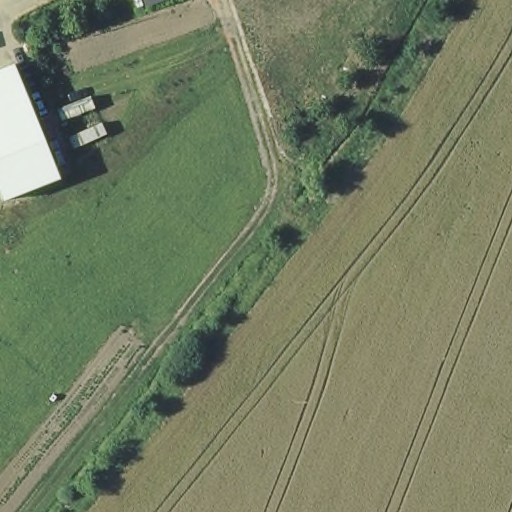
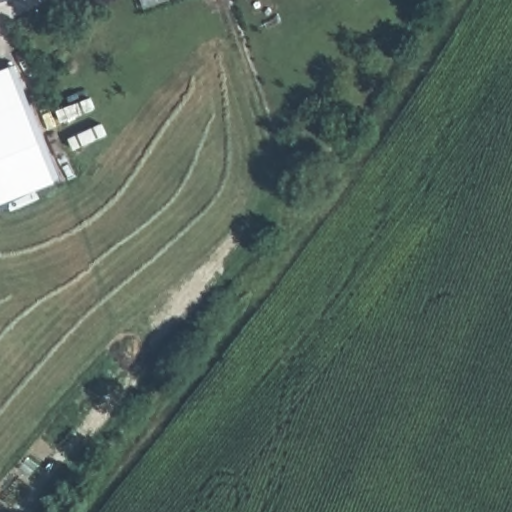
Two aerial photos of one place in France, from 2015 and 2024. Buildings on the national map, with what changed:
unchanged [(149,0),(170,0),(152,8),(149,0)]
unchanged [(60,180),(4,203),(0,194),(0,72),(15,66),(60,180)]

